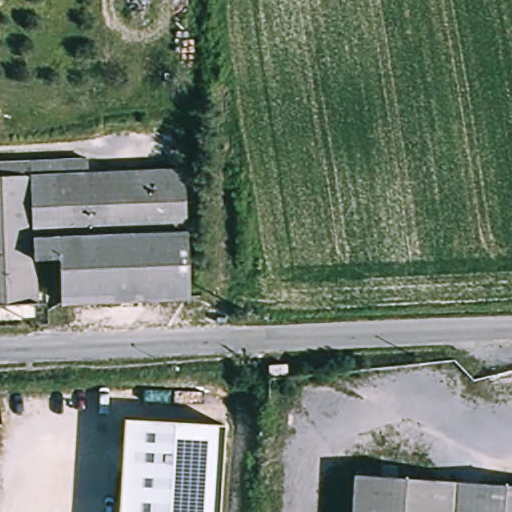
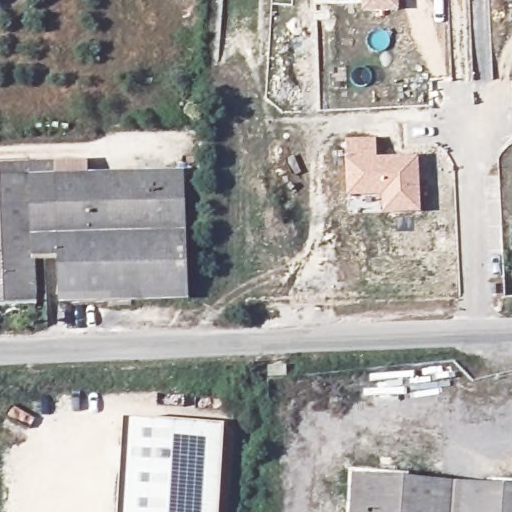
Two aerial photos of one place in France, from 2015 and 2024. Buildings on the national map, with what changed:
new [(398,10),(363,12),(363,0),(397,0),(398,10)]
new [(419,156),(421,213),(383,214),(382,197),(347,197),(346,159),(345,139),(377,138),(376,159),(419,156)]
unchanged [(0,164),(93,162),(94,179),(0,182),(0,164)]
unchanged [(190,293),(67,299),(64,255),(40,256),(42,297),(0,300),(0,182),(94,179),(186,176),(190,293)]
unchanged [(222,426),(216,512),(117,512),(123,420),(222,426)]
unchanged [(512,486),(512,512),(359,512),(363,473),(512,486)]

